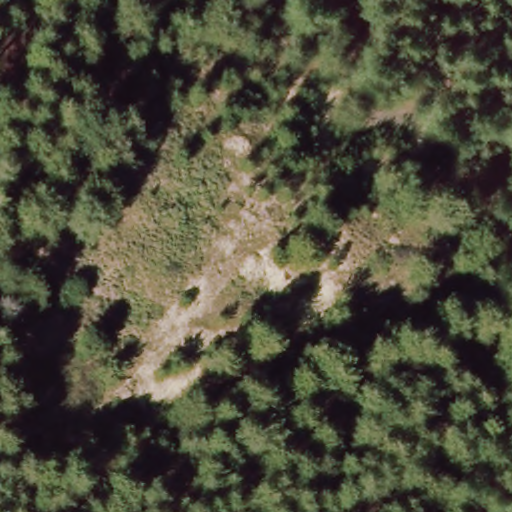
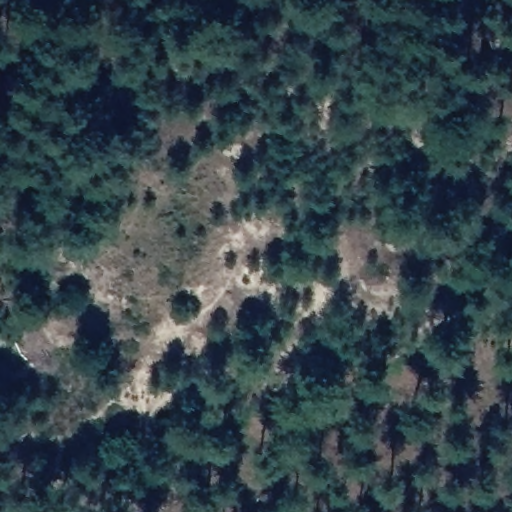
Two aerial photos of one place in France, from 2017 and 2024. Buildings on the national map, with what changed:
unchanged [(265,88),(284,88),(284,103),(265,104),(265,88)]

